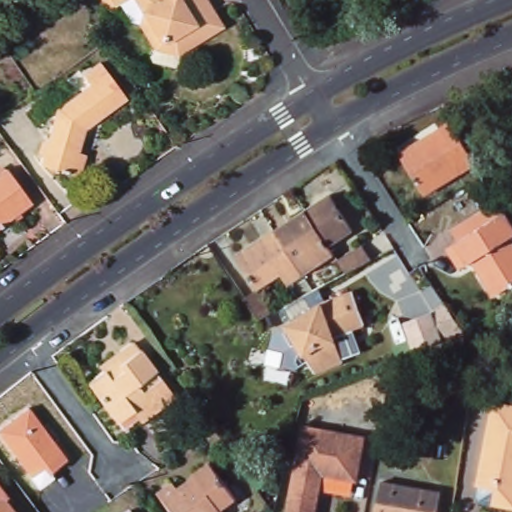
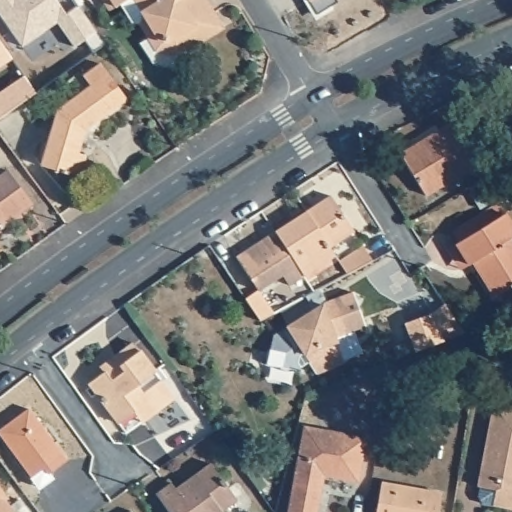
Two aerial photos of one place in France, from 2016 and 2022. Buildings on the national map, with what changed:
new [(66,13),(77,4),(96,30),(105,43),(92,51),(83,39),(73,47),(55,22),(21,45),(0,16),(0,0),(56,0),(66,13)]
unchanged [(115,10),(110,14),(101,0),(203,0),(210,10),(221,31),(177,57),(179,65),(175,69),(153,66),(150,61),(155,53),(140,29),(131,26),(120,8),(115,10)]
unchanged [(121,96),(79,127),(76,126),(69,148),(80,152),(73,174),(37,162),(54,108),(85,85),(78,75),(96,62),(121,96)]
unchanged [(448,127),(472,166),(426,195),(402,156),(448,127)]
unchanged [(29,204),(0,226),(0,174),(5,170),(29,204)]
unchanged [(330,194),(351,228),(325,244),(303,210),(330,194)]
unchanged [(443,250),(455,243),(458,241),(450,229),(497,200),(505,212),(512,223),(512,235),(511,235),(512,236),(512,282),(494,293),(472,260),(466,263),(455,270),(443,250)]
unchanged [(303,210),(325,244),(330,254),(300,273),(273,230),(303,210)]
unchanged [(280,273),(255,290),(234,255),(273,230),(300,273),(286,282),(280,273)]
unchanged [(360,242),(370,260),(343,274),(332,256),(360,242)]
unchanged [(270,312),(255,321),(241,299),(255,290),(270,312)]
unchanged [(340,363),(342,366),(314,377),(306,367),(292,375),(286,374),(266,370),(266,362),(264,358),(270,355),(270,349),(271,343),(275,344),(286,336),(285,333),(311,316),(302,301),(311,295),(316,293),(325,308),(350,298),(356,302),(356,315),(361,329),(350,333),(360,355),(340,363)]
unchanged [(401,325),(430,312),(442,305),(460,333),(457,334),(417,349),(412,350),(401,325)]
unchanged [(104,372),(101,368),(117,357),(121,363),(139,351),(174,396),(155,410),(148,401),(119,423),(89,383),(104,372)]
unchanged [(487,509),(481,501),(481,493),(490,410),(512,412),(512,509),(496,507),(496,509),(487,509)]
unchanged [(31,480),(0,438),(0,431),(29,411),(66,463),(49,476),(52,481),(39,490),(31,480)]
unchanged [(355,481),(321,477),(314,512),(288,512),(295,470),(300,470),(309,429),(365,438),(355,481)]
unchanged [(170,491),(206,467),(231,504),(220,512),(163,512),(151,494),(165,484),(170,491)]
unchanged [(0,485),(0,483),(1,484),(0,485)]
unchanged [(435,491),(432,512),(370,512),(375,485),(435,491)]
unchanged [(0,512),(0,489),(16,512),(0,512)]
unchanged [(132,512),(127,512),(130,509),(132,512)]

